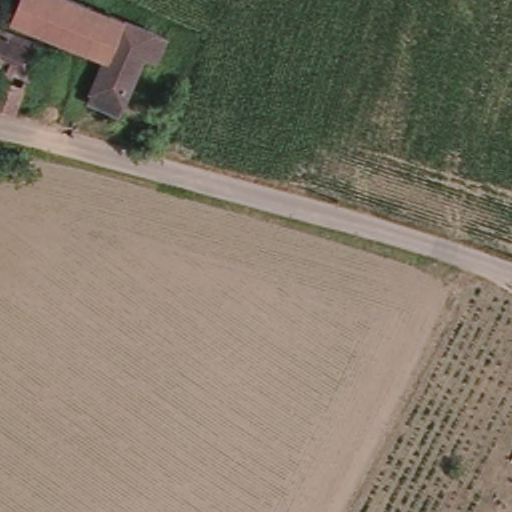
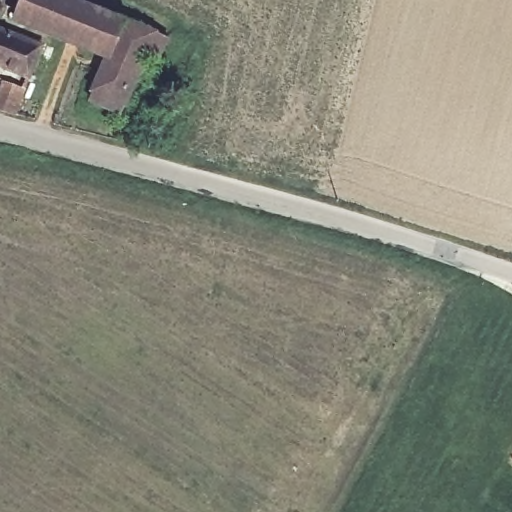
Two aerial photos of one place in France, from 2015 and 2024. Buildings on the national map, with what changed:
unchanged [(10,22),(17,0),(78,0),(117,16),(101,63),(10,22)]
unchanged [(162,36),(152,64),(137,59),(111,121),(82,112),(97,75),(101,63),(117,16),(162,36)]
unchanged [(23,88),(0,78),(0,30),(40,48),(23,88)]
unchanged [(0,112),(0,84),(22,93),(13,118),(0,112)]

